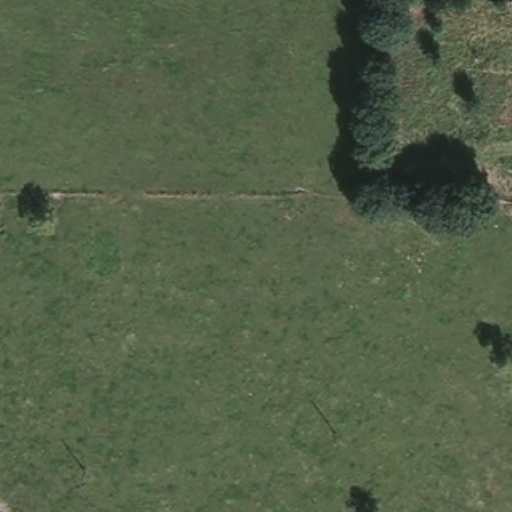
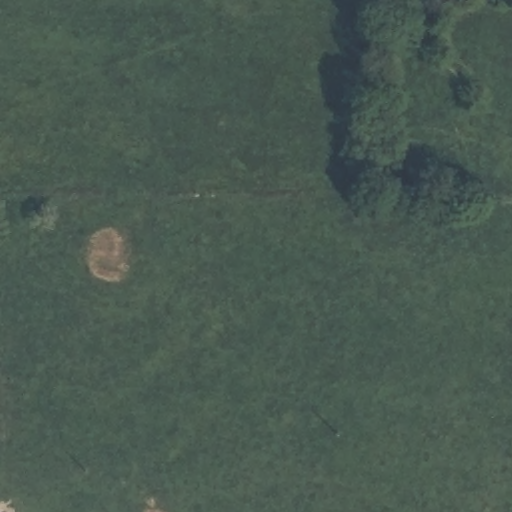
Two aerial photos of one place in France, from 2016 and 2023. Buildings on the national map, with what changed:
[]

